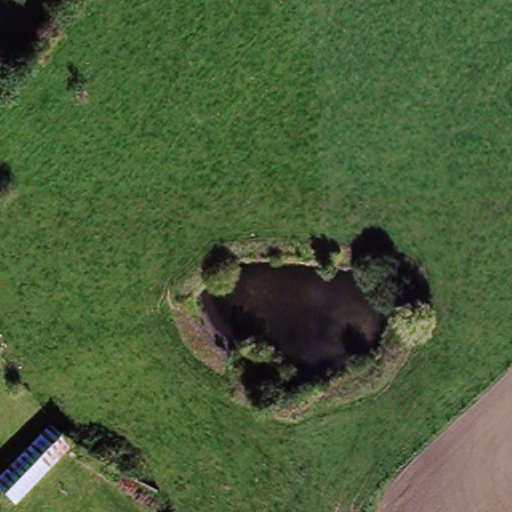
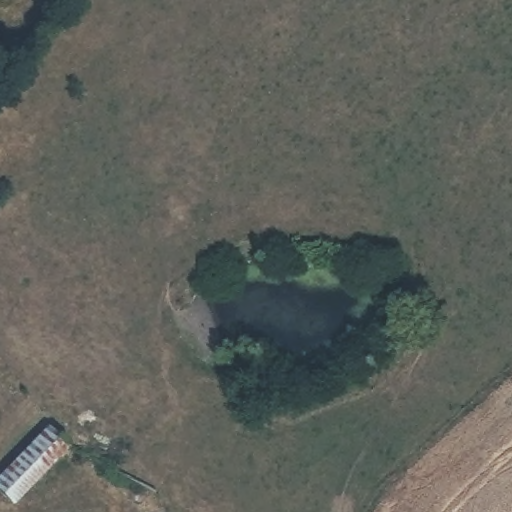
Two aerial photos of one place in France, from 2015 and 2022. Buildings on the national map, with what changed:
unchanged [(0,503),(0,488),(48,436),(70,456),(17,512),(10,512),(0,503)]

